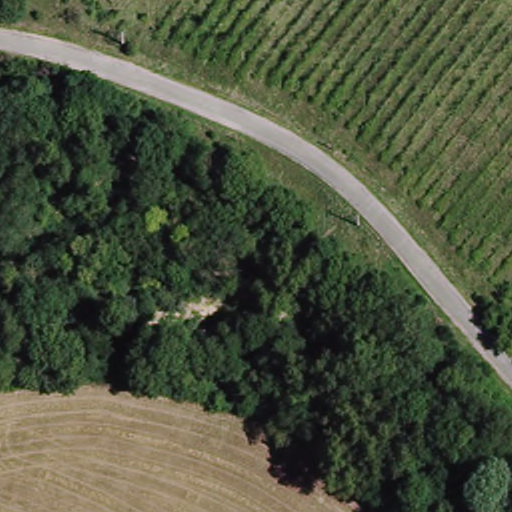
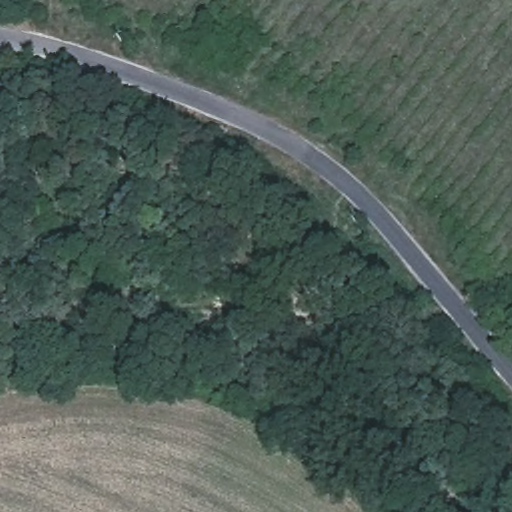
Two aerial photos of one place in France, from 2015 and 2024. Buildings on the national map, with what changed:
[]

